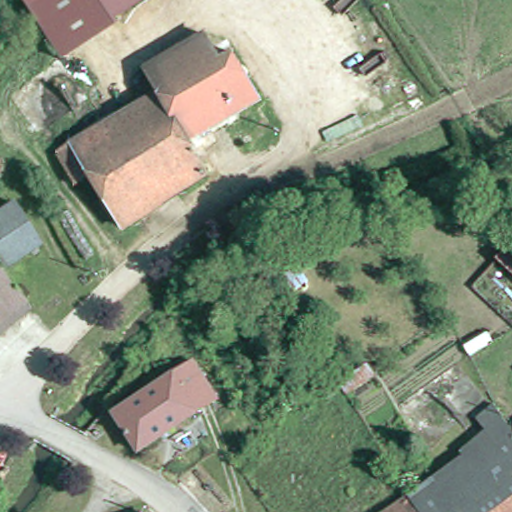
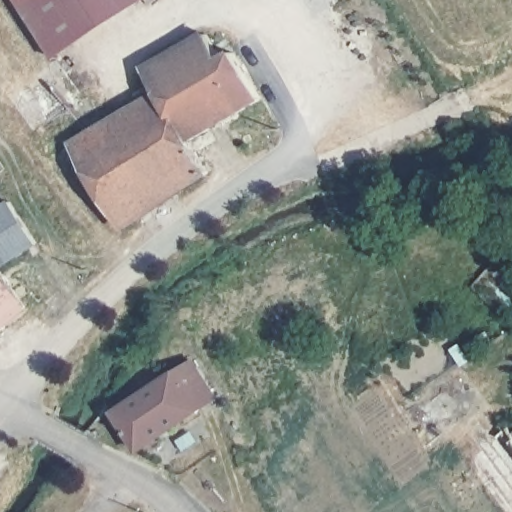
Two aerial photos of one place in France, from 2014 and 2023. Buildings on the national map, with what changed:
unchanged [(19,0),(44,0),(25,11),(19,0)]
unchanged [(141,0),(53,56),(25,11),(44,0),(141,0)]
unchanged [(125,228),(93,173),(75,184),(58,155),(163,94),(148,69),(209,34),(225,59),(236,53),(264,99),(192,141),(210,173),(125,228)]
unchanged [(40,244),(2,269),(27,307),(0,329),(0,210),(12,202),(40,244)]
unchanged [(288,294),(280,279),(302,267),(310,281),(288,294)]
unchanged [(117,413),(196,360),(220,399),(142,451),(117,413)]
unchanged [(345,389),(341,384),(370,363),(376,373),(347,393),(345,389)]
demolished [(412,501),(465,462),(468,466),(498,444),(490,434),(482,425),(496,408),(512,433),(512,512),(421,512),(412,501)]
demolished [(421,512),(395,512),(412,501),(421,512)]

